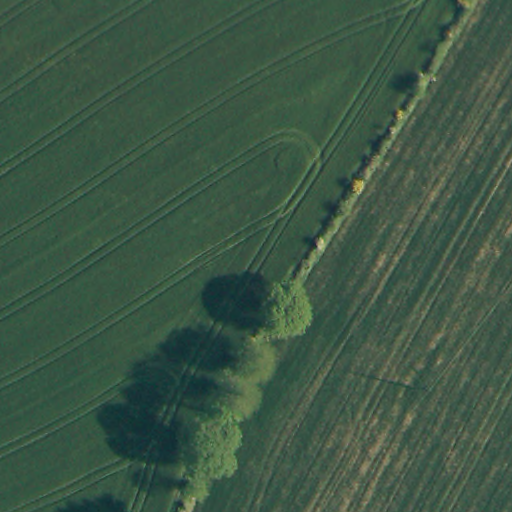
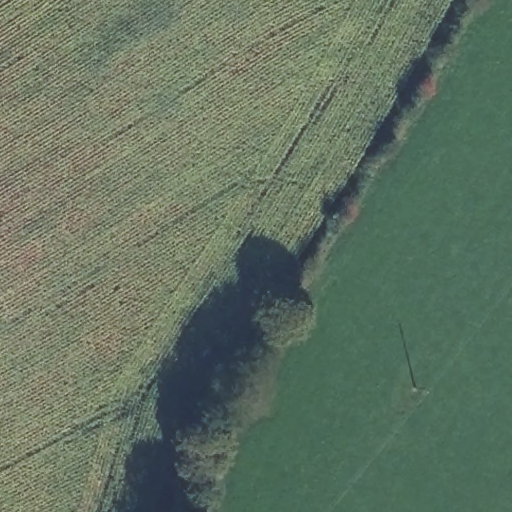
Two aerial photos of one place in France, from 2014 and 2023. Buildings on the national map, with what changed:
[]

